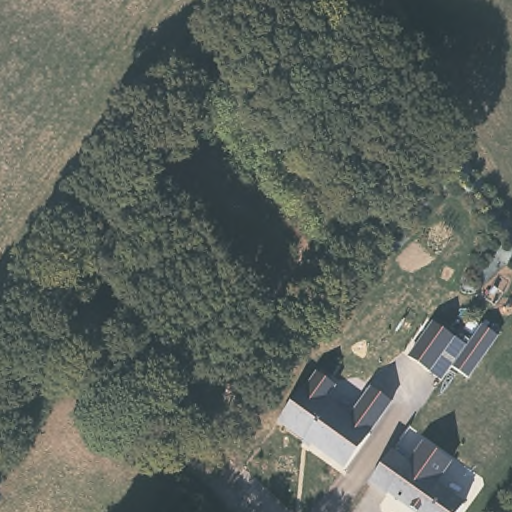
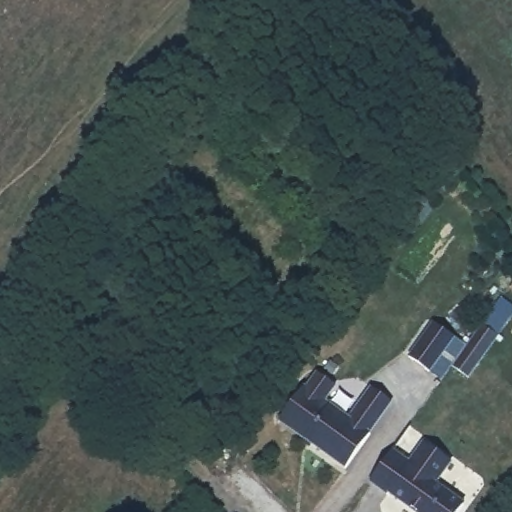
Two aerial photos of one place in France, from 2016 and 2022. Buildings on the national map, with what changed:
unchanged [(455,335),(431,371),(403,354),(428,319),(455,335)]
unchanged [(337,385),(327,401),(349,416),(372,384),(393,400),(345,469),(278,421),(317,371),(337,385)]
unchanged [(420,440),(452,460),(438,483),(465,503),(460,512),(413,512),(368,481),(391,449),(406,460),(420,440)]

